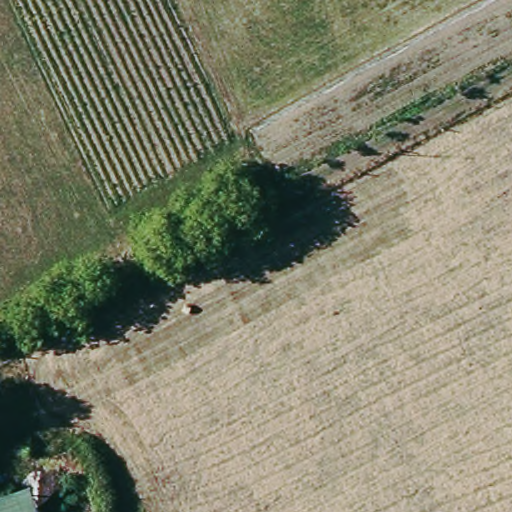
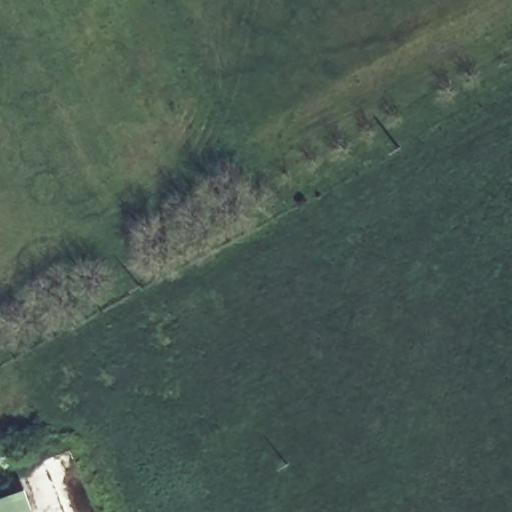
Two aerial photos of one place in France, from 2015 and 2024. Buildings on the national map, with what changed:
unchanged [(53,512),(0,512),(0,511),(49,496),(53,512)]

